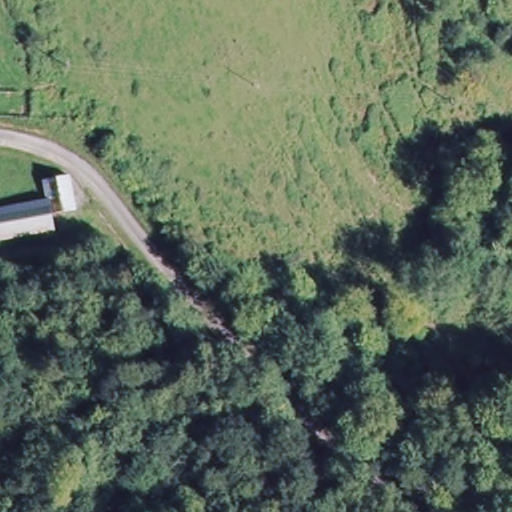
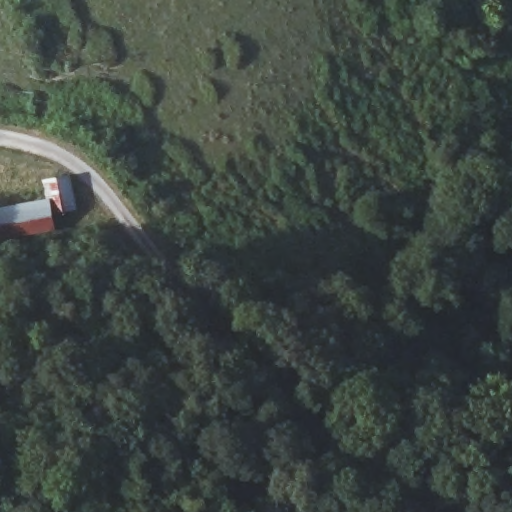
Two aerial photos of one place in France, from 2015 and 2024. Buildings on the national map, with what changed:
unchanged [(45,200),(42,182),(64,175),(70,195),(76,210),(52,216),(56,230),(0,239),(0,209),(45,200)]

